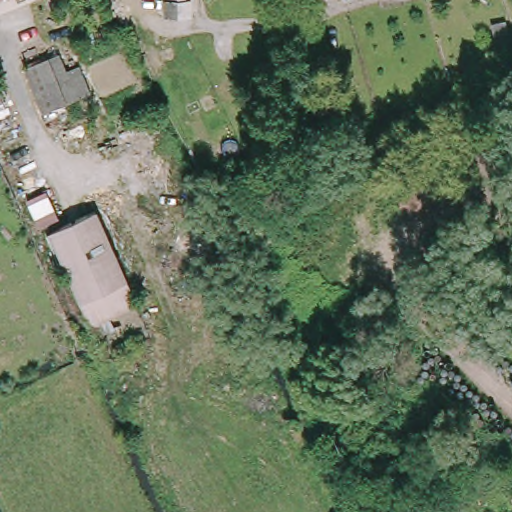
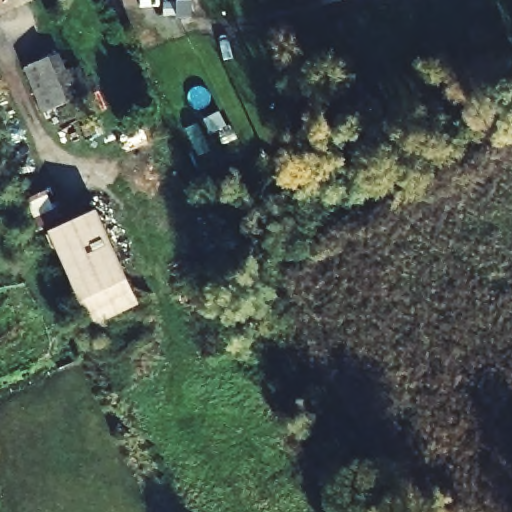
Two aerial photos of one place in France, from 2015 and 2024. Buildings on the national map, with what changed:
unchanged [(0,8),(0,0),(8,0),(10,5),(0,8)]
unchanged [(167,2),(172,2),(172,0),(186,0),(186,1),(192,1),(193,17),(180,17),(179,17),(167,17),(167,2)]
unchanged [(48,58),(71,107),(49,117),(26,68),(48,58)]
unchanged [(97,215),(140,308),(97,328),(53,235),(97,215)]

